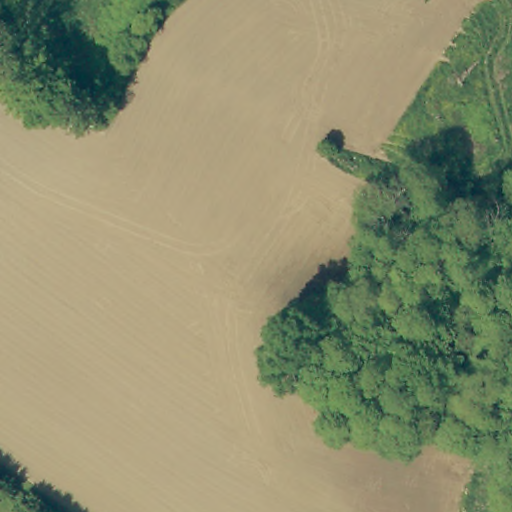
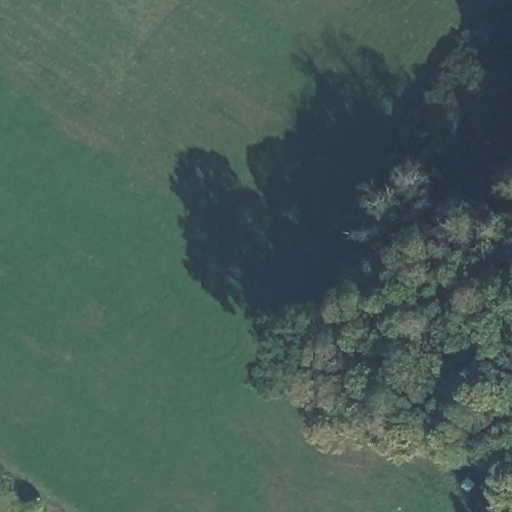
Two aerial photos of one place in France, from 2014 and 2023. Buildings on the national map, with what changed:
[]

